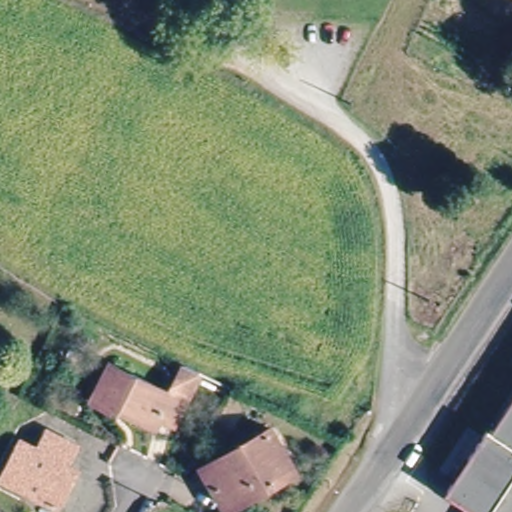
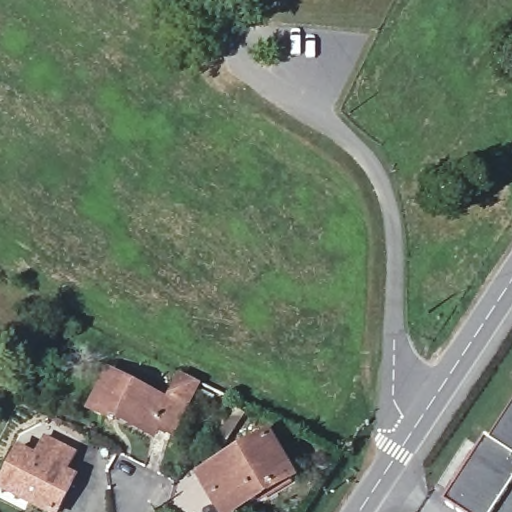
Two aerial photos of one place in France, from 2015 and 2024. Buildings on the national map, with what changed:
unchanged [(196,381),(193,388),(171,435),(154,428),(150,436),(110,416),(106,421),(89,411),(105,378),(165,403),(175,380),(179,373),(196,381)]
unchanged [(442,506),(512,402),(512,512),(451,512),(442,506)]
unchanged [(78,480),(61,512),(6,483),(25,444),(43,454),(53,434),(81,449),(71,468),(82,473),(78,480)]
unchanged [(268,444),(291,482),(238,512),(224,512),(205,480),(268,444)]

